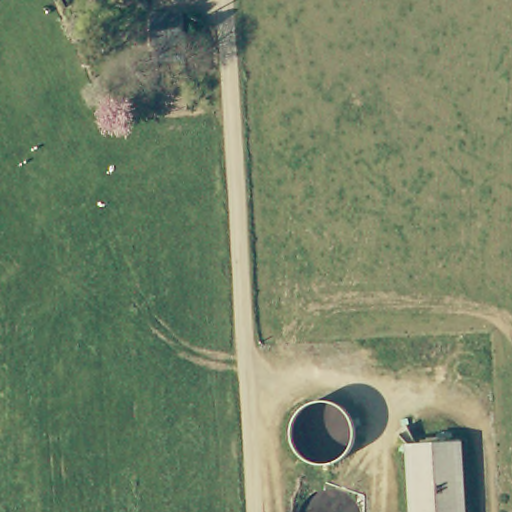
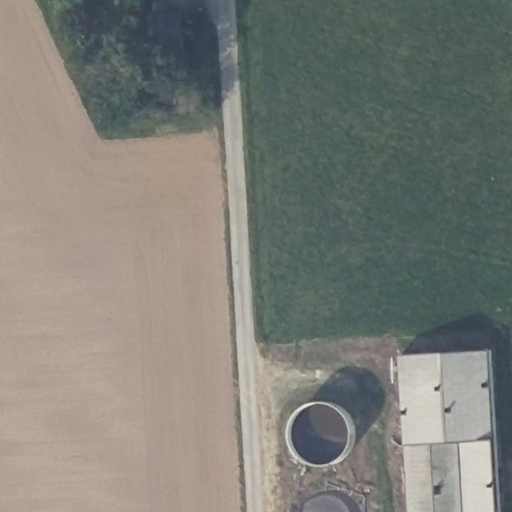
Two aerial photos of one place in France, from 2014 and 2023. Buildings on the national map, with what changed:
unchanged [(145,11),(176,10),(178,55),(155,58),(153,43),(147,43),(145,11)]
new [(460,441),(405,445),(401,354),(492,348),(497,438),(501,512),(465,512),(460,441)]
unchanged [(460,441),(465,512),(410,512),(405,445),(460,441)]

